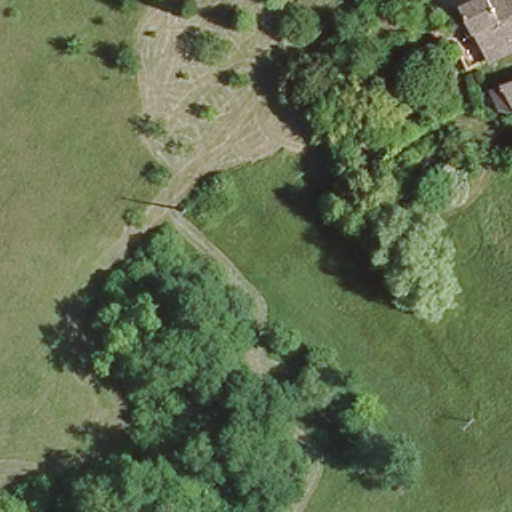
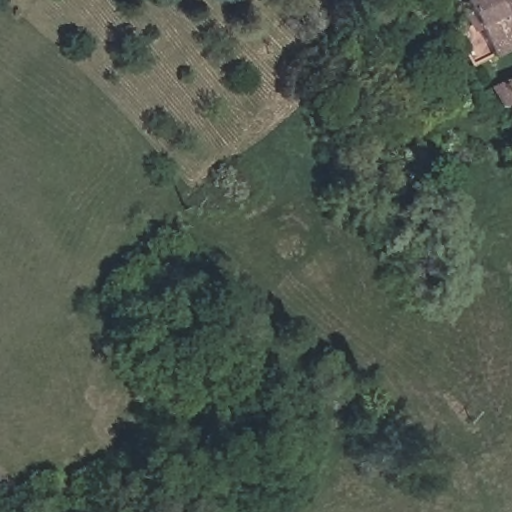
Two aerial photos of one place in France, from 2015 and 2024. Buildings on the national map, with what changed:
unchanged [(512,0),(512,40),(483,55),(456,0),(512,0)]
unchanged [(497,103),(488,85),(512,77),(512,104),(497,103)]

